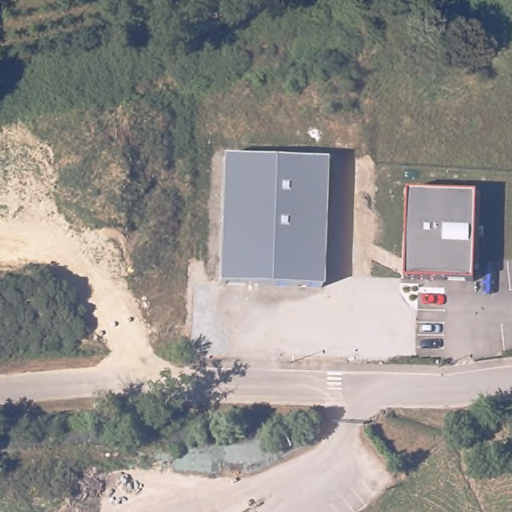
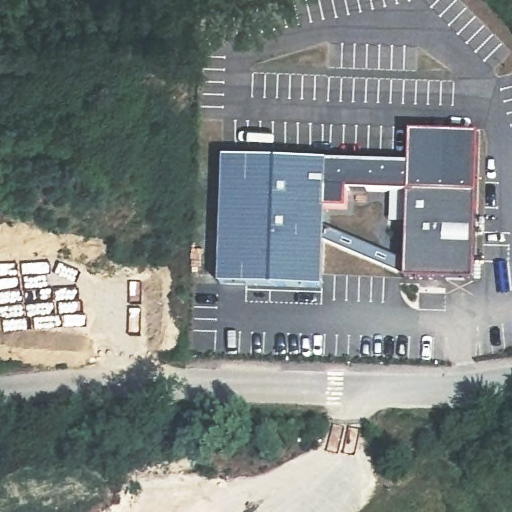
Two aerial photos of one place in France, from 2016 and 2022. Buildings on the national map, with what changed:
new [(409,191),(346,189),(346,208),(325,208),(327,160),(409,163),(409,131),(477,133),(474,205),(409,203),(409,191)]
unchanged [(327,159),(323,287),(221,284),(225,156),(327,159)]
unchanged [(478,205),(476,290),(406,288),(409,203),(478,205)]

